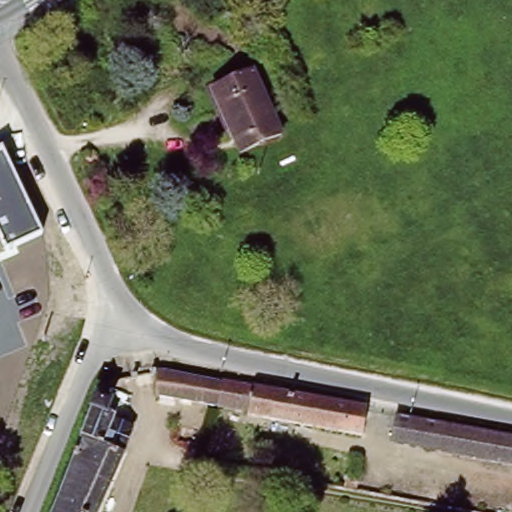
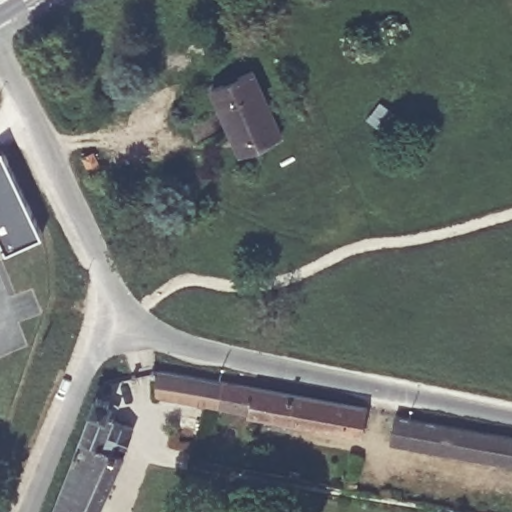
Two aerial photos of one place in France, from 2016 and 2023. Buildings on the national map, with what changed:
unchanged [(251,64),(281,127),(242,146),(210,83),(251,64)]
unchanged [(42,234),(7,250),(0,235),(0,148),(2,147),(42,234)]
unchanged [(100,170),(92,174),(85,161),(93,157),(100,170)]
unchanged [(152,373),(157,372),(220,383),(215,408),(155,397),(152,373)]
unchanged [(220,383),(365,408),(360,434),(245,416),(245,413),(215,408),(220,383)]
unchanged [(78,436),(95,399),(105,403),(100,414),(110,418),(108,422),(129,429),(119,455),(121,456),(99,512),(49,512),(78,436)]
unchanged [(390,442),(394,418),(512,436),(512,462),(390,442)]

